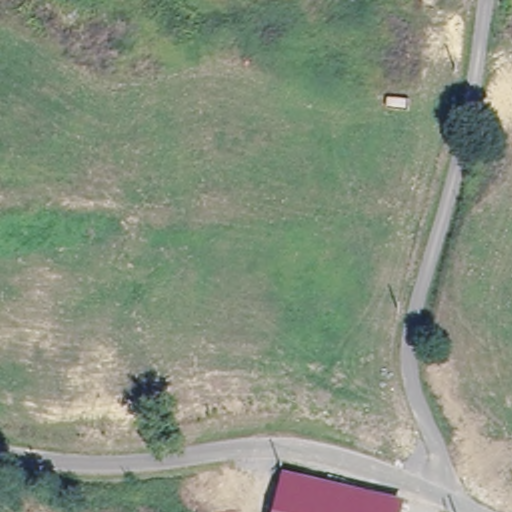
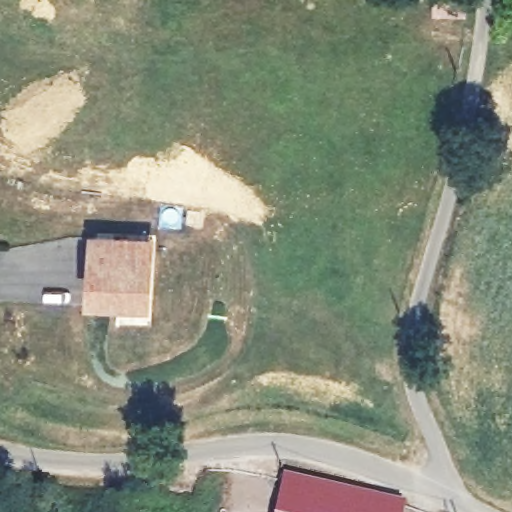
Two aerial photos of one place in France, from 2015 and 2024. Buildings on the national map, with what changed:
new [(156,235),(152,307),(87,305),(90,232),(156,235)]
unchanged [(403,503),(401,512),(274,512),(282,473),(403,503)]

